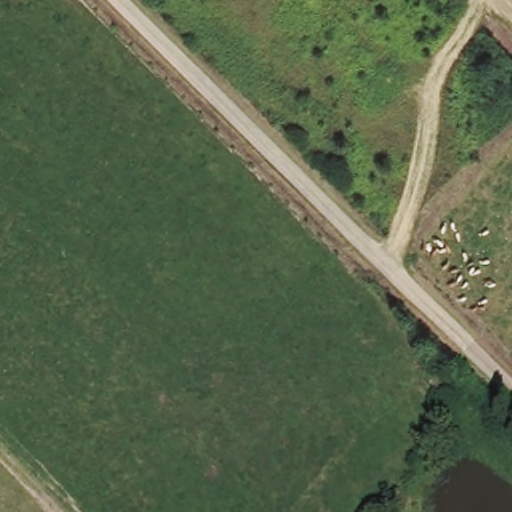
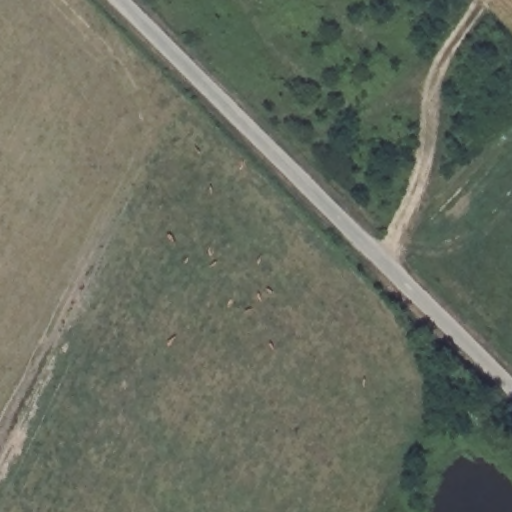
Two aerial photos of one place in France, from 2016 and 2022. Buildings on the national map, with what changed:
[]

